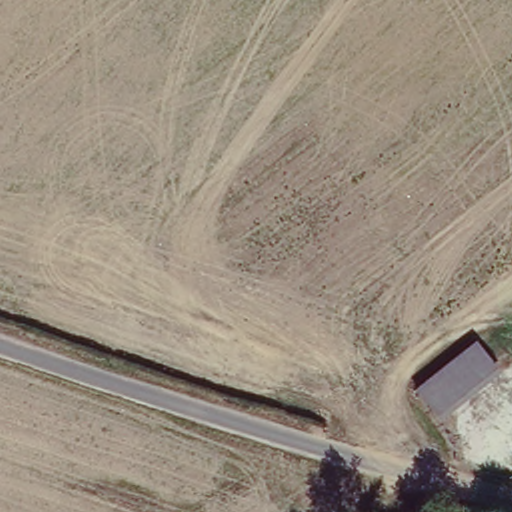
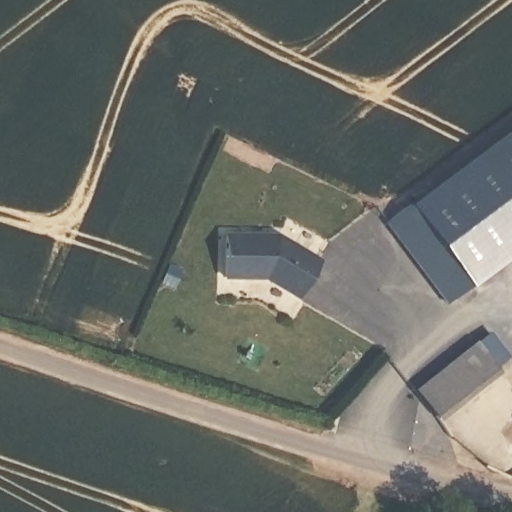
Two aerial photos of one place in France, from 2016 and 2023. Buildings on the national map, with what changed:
new [(512,126),(512,253),(469,285),(409,205),(512,126)]
new [(409,205),(469,285),(447,302),(387,222),(409,205)]
new [(226,235),(286,241),(318,260),(296,296),(265,277),(225,277),(226,235)]
unchanged [(416,385),(476,337),(499,368),(440,415),(416,385)]

